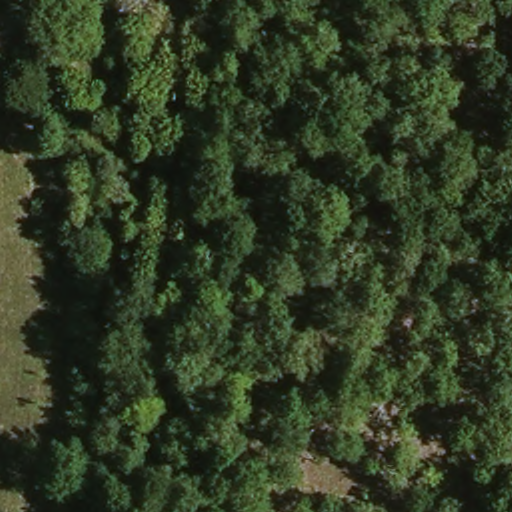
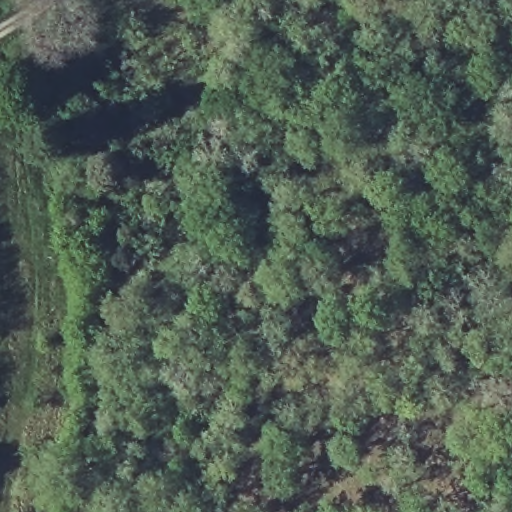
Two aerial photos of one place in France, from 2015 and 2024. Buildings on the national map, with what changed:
[]

